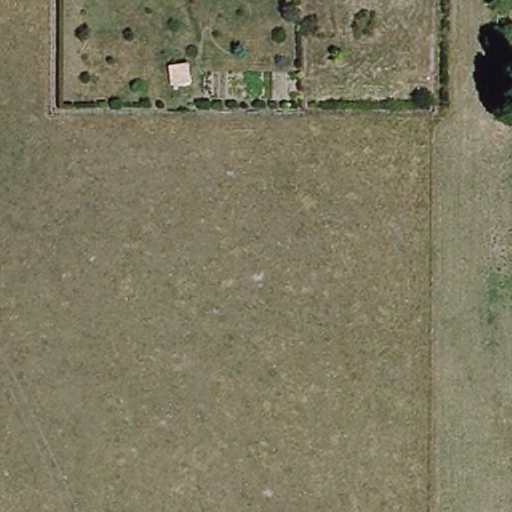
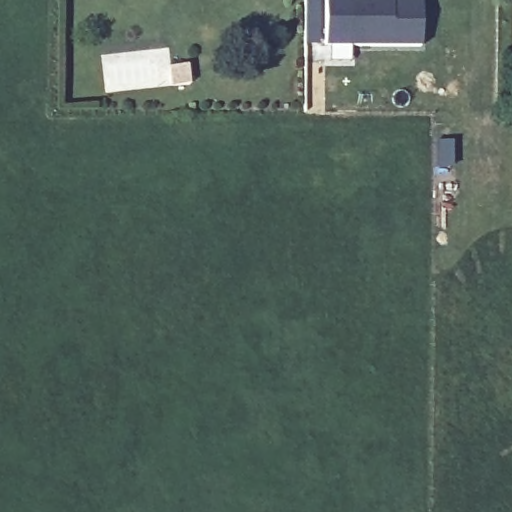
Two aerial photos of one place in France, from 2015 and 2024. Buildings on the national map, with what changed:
new [(391,1),(422,0),(421,47),(325,45),(326,0),(391,0),(391,1)]
unchanged [(187,65),(191,86),(172,88),(169,67),(187,65)]

